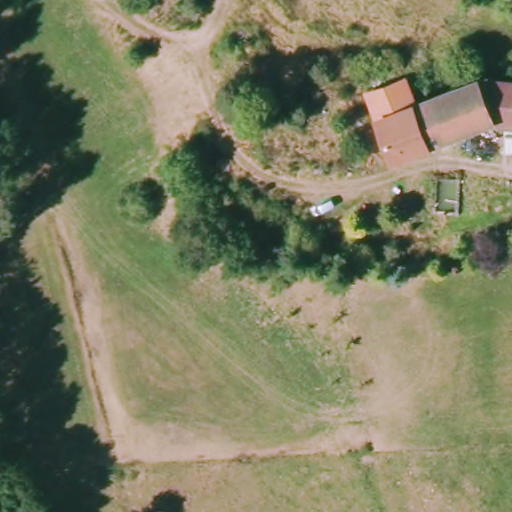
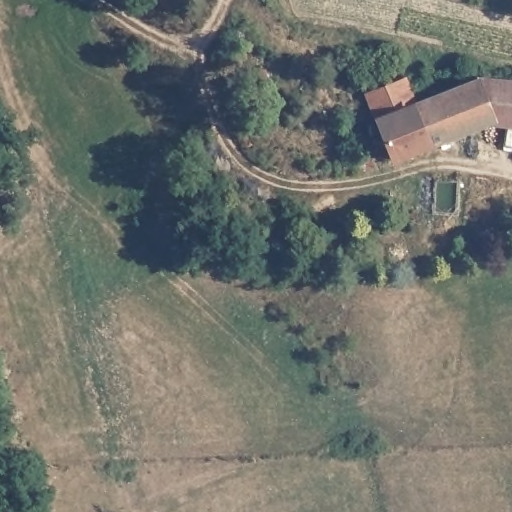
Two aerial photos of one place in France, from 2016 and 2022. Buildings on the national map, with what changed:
unchanged [(432,147),(391,162),(373,119),(362,94),(405,78),(413,102),(479,76),(512,78),(512,125),(494,122),(432,147)]

